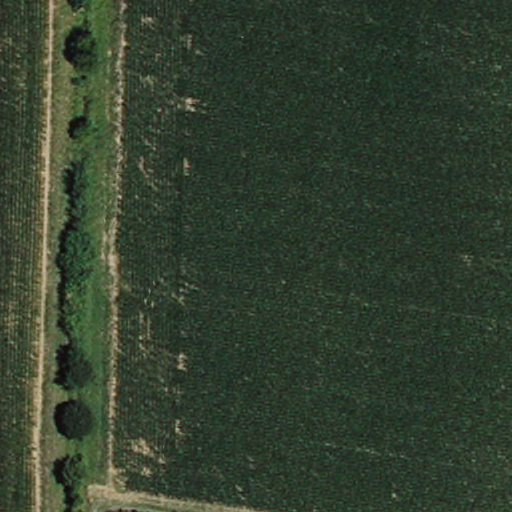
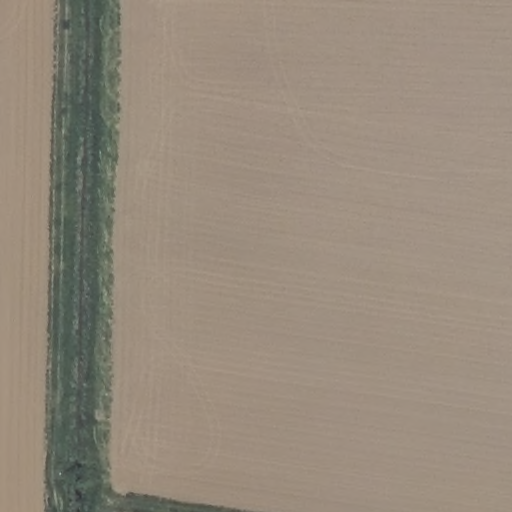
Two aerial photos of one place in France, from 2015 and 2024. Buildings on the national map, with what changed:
[]

